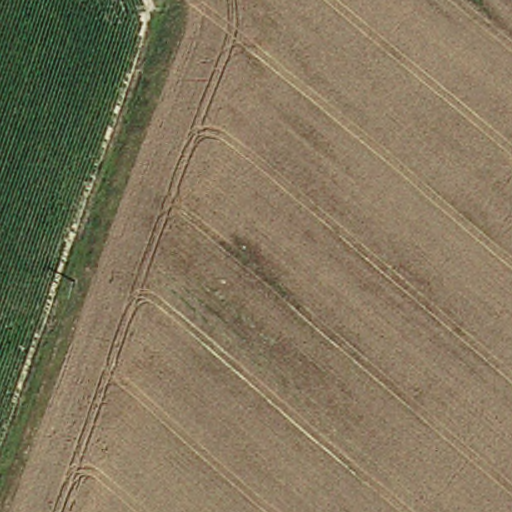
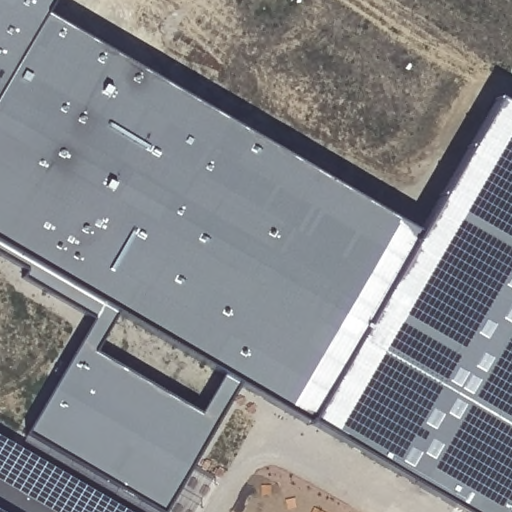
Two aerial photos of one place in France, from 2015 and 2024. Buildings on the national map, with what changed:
new [(307,422),(240,383),(224,374),(118,312),(0,243),(0,0),(52,0),(43,15),(420,234),(497,99),(512,107),(512,509),(510,512),(463,512),(309,419),(307,422)]
new [(27,432),(93,317),(22,275),(26,267),(0,251),(0,243),(118,312),(93,352),(200,414),(224,374),(240,383),(164,512),(27,432)]

